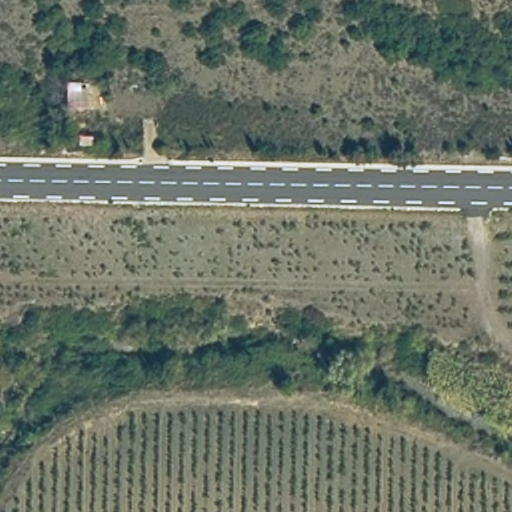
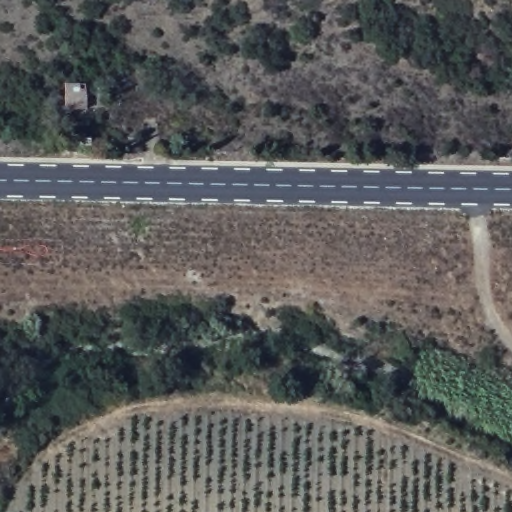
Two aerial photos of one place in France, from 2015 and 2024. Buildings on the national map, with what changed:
unchanged [(88,80),(86,104),(67,103),(68,80),(88,80)]

